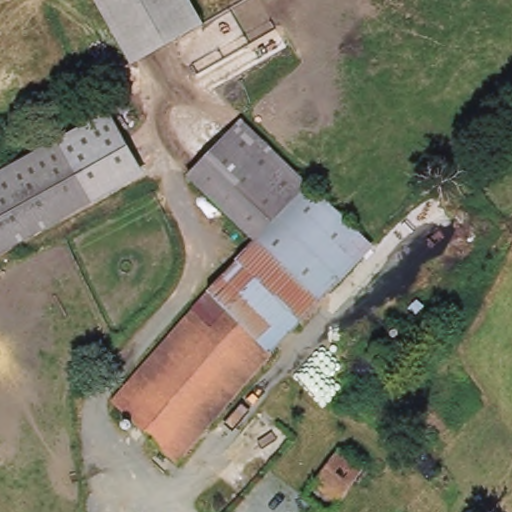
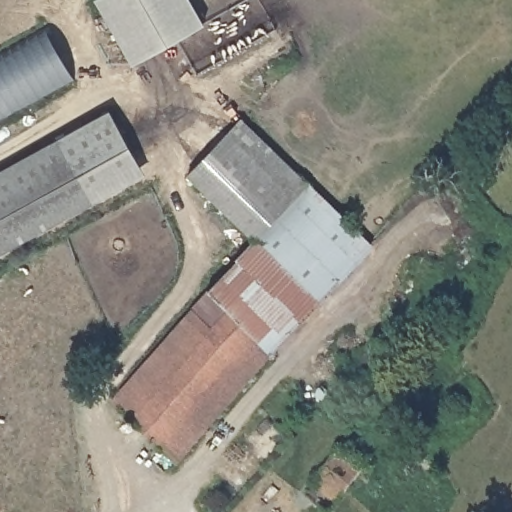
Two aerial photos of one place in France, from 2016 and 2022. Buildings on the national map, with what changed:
unchanged [(191,0),(206,26),(131,71),(94,1),(97,0),(191,0)]
new [(0,123),(0,57),(47,29),(76,79),(0,123)]
unchanged [(145,174),(0,258),(0,242),(85,196),(57,146),(109,111),(145,174)]
unchanged [(145,438),(140,443),(118,426),(125,419),(109,402),(205,291),(251,238),(185,176),(242,115),(377,247),(179,468),(145,438)]
unchanged [(85,196),(0,242),(0,178),(57,146),(85,196)]
unchanged [(363,473),(335,505),(310,484),(340,451),(363,473)]

